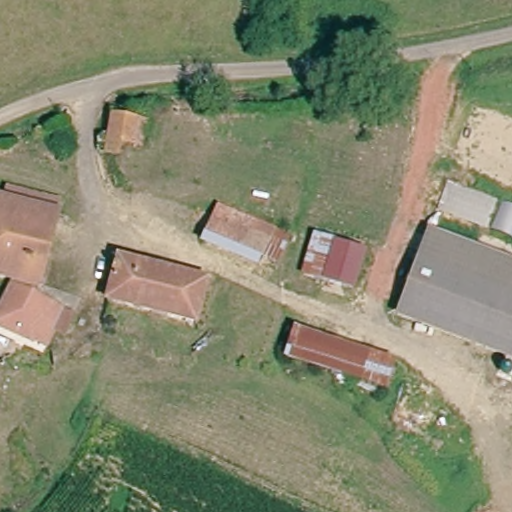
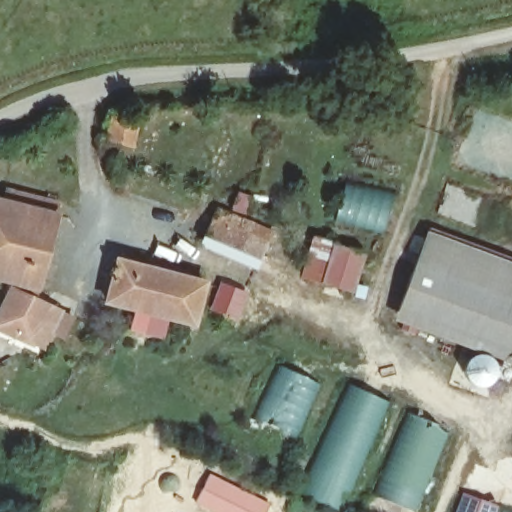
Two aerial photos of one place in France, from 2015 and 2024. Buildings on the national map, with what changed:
unchanged [(145,150),(116,148),(112,167),(98,166),(105,116),(150,116),(145,150)]
new [(382,234),(336,215),(342,198),(348,200),(349,188),(393,196),(391,208),(382,234)]
unchanged [(53,218),(0,204),(0,190),(55,203),(53,218)]
unchanged [(45,247),(35,288),(33,287),(31,294),(30,298),(33,299),(65,305),(65,306),(76,309),(74,315),(71,330),(60,327),(56,347),(53,346),(0,335),(0,333),(9,289),(9,287),(0,285),(0,204),(53,218),(45,247)]
unchanged [(204,249),(218,212),(288,238),(273,275),(204,249)]
unchanged [(307,284),(316,244),(364,255),(356,294),(307,284)]
unchanged [(419,248),(512,269),(512,348),(401,324),(413,274),(419,248)]
unchanged [(116,263),(204,284),(202,295),(194,326),(188,324),(107,306),(112,284),(116,263)]
new [(252,419),(276,364),(321,384),(298,439),(252,419)]
new [(298,493),(348,383),(389,402),(340,512),(298,493)]
new [(408,413),(451,432),(416,512),(411,512),(372,496),(408,413)]
new [(497,512),(456,512),(463,493),(499,507),(497,512)]

